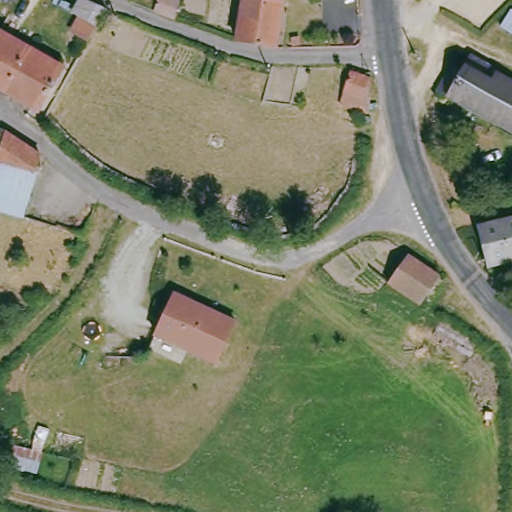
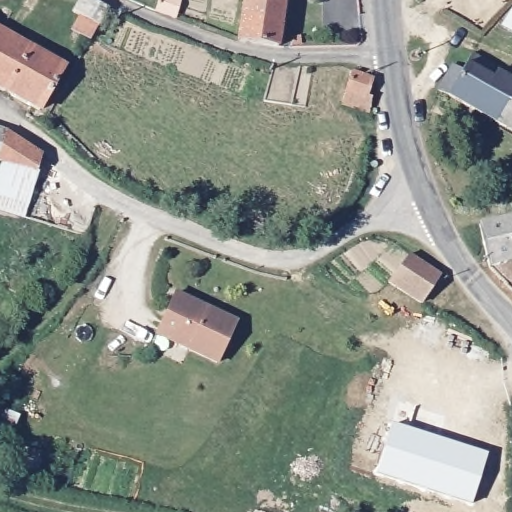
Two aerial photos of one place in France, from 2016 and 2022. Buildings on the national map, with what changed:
unchanged [(181,3),(176,19),(151,7),(155,0),(172,0),(181,3)]
unchanged [(267,46),(225,36),(236,0),(275,0),(267,46)]
unchanged [(79,41),(89,24),(79,19),(88,5),(111,19),(104,32),(94,51),(79,41)]
unchanged [(61,67),(37,113),(22,105),(0,92),(0,33),(61,67)]
unchanged [(490,77),(512,89),(512,134),(434,88),(447,64),(457,68),(466,54),(493,68),(490,77)]
unchanged [(339,79),(343,67),(366,74),(366,104),(336,100),(339,79)]
unchanged [(44,159),(28,179),(11,215),(0,211),(0,124),(13,130),(20,134),(44,159)]
unchanged [(479,266),(472,225),(512,214),(512,263),(484,271),(479,266)]
unchanged [(393,285),(388,281),(410,256),(441,279),(419,304),(393,285)]
unchanged [(191,298),(191,302),(204,309),(206,305),(235,320),(214,362),(154,333),(175,290),(191,298)]
new [(392,415),(489,442),(475,491),(379,464),(392,415)]

